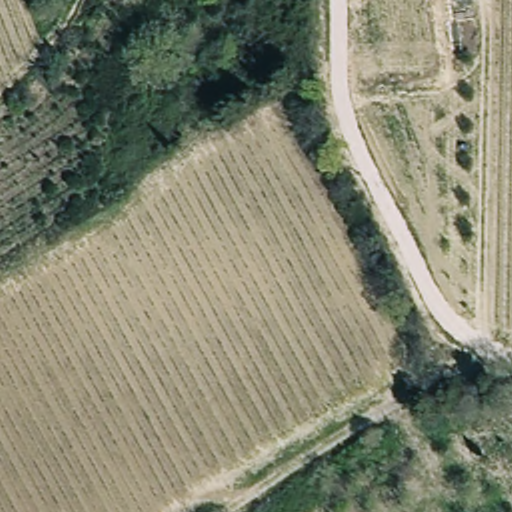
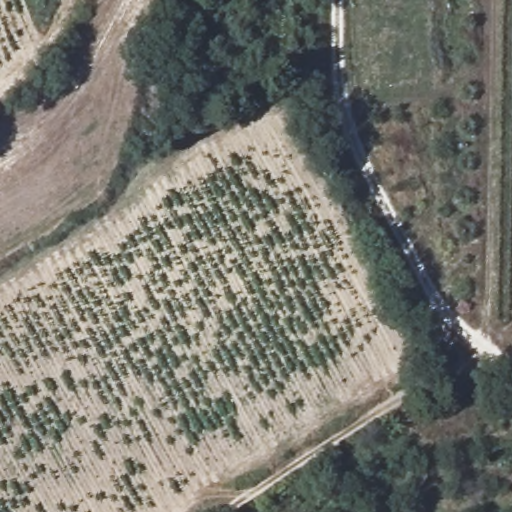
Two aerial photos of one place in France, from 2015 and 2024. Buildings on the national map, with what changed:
[]

